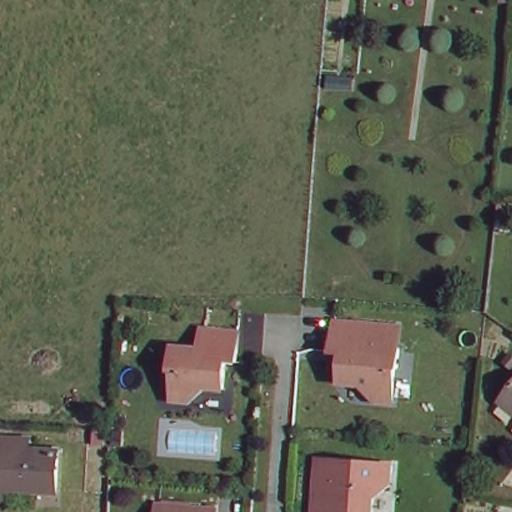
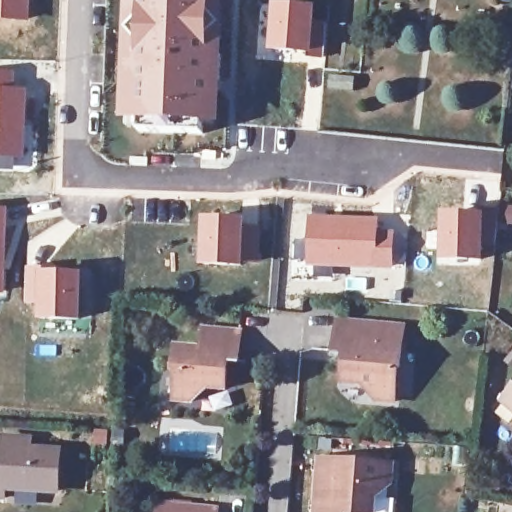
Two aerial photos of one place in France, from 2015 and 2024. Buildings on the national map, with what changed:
new [(29,21),(0,20),(0,0),(30,0),(29,21)]
new [(124,0),(225,0),(221,124),(120,121),(124,0)]
new [(271,0),(317,4),(313,54),(267,51),(271,0)]
new [(17,70),(16,87),(27,87),(25,159),(14,159),(14,170),(0,170),(0,70),(17,70)]
new [(7,206),(5,293),(0,293),(0,206),(7,206)]
new [(440,211),(485,210),(482,261),(439,260),(440,211)]
new [(307,214),(379,216),(378,230),(395,230),(393,269),(305,265),(307,214)]
new [(199,216),(245,217),(243,266),(198,266),(199,216)]
new [(24,267),(82,271),(80,320),(37,320),(37,305),(23,305),(24,267)]
unchanged [(394,324),(392,344),(403,345),(400,366),(398,366),(395,400),(377,398),(364,382),(343,380),(346,350),(336,349),(339,319),(394,324)]
unchanged [(243,328),(240,359),(230,358),(227,385),(210,384),(194,398),(176,396),(179,366),(176,366),(178,343),(204,345),(206,325),(243,328)]
unchanged [(512,392),(512,413),(502,405),(512,392)]
unchanged [(57,492),(5,489),(5,499),(0,499),(0,467),(9,468),(10,452),(11,440),(32,442),(32,453),(58,456),(57,492)]
unchanged [(391,482),(375,496),(374,512),(351,512),(345,511),(345,512),(316,512),(320,456),(393,463),(391,482)]
unchanged [(213,505),(213,512),(154,512),(154,500),(213,505)]

